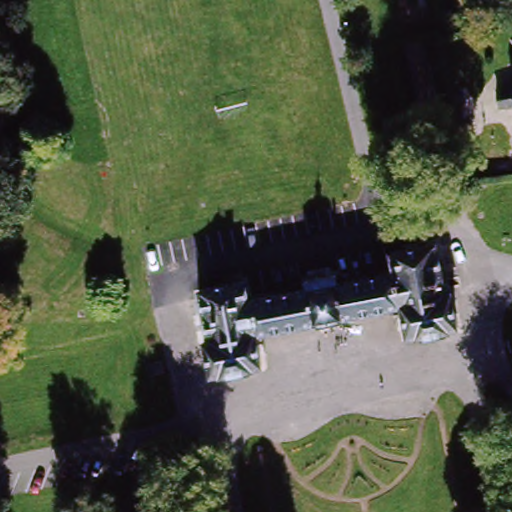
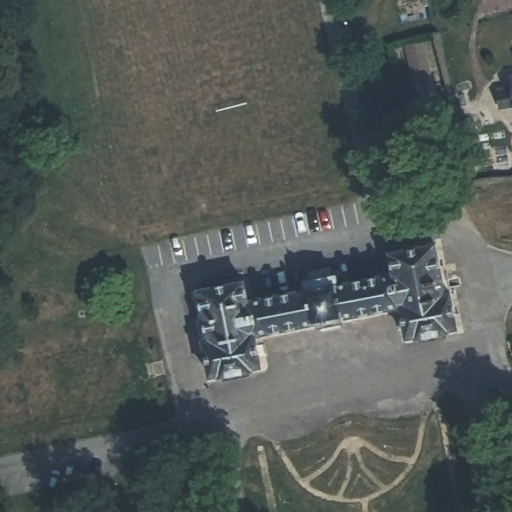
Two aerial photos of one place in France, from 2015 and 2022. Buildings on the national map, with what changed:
unchanged [(507,90),(512,89),(512,110),(511,110),(507,90)]
unchanged [(474,189),(474,197),(463,199),(461,185),(472,183),(474,189)]
unchanged [(399,309),(259,336),(264,367),(212,376),(204,342),(211,340),(201,289),(248,280),(253,302),(309,290),(308,281),(338,274),(339,285),(392,274),(390,253),(434,244),(445,295),(454,294),(459,329),(406,338),(399,309)]

